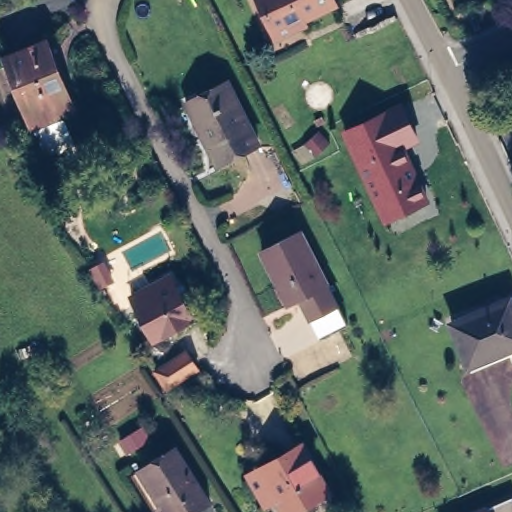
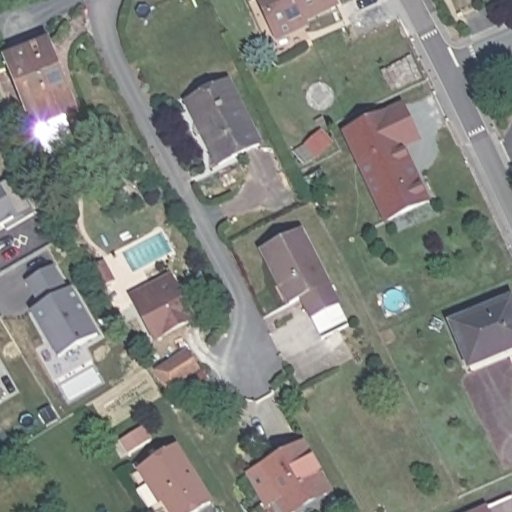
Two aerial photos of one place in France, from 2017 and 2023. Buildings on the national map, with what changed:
unchanged [(281,32),(277,23),(266,0),(338,0),(308,14),(311,19),(281,32)]
unchanged [(47,42),(75,107),(34,124),(33,125),(7,58),(47,42)]
unchanged [(225,82),(255,143),(213,165),(204,147),(207,146),(186,102),(225,82)]
unchanged [(407,150),(430,203),(383,224),(340,130),(403,102),(423,142),(407,150)]
new [(7,231),(4,226),(0,228),(0,185),(12,177),(32,209),(35,214),(7,231)]
unchanged [(306,232),(352,326),(326,340),(307,300),(295,305),(268,251),(306,232)]
new [(52,266),(67,291),(70,289),(97,335),(58,357),(47,337),(50,337),(34,310),(41,306),(27,281),(52,266)]
unchanged [(130,301),(174,278),(195,322),(150,345),(130,301)]
unchanged [(512,304),(512,349),(470,367),(452,323),(510,299),(512,304)]
unchanged [(168,392),(154,371),(188,352),(202,373),(168,392)]
new [(3,397),(0,399),(0,391),(3,397)]
unchanged [(255,472),(267,466),(265,463),(307,440),(333,488),(293,512),(283,493),(272,501),(255,472)]
unchanged [(218,498),(196,512),(182,512),(177,503),(167,510),(141,472),(185,445),(218,498)]
unchanged [(487,509),(512,498),(512,512),(472,512),(485,506),(487,509)]

